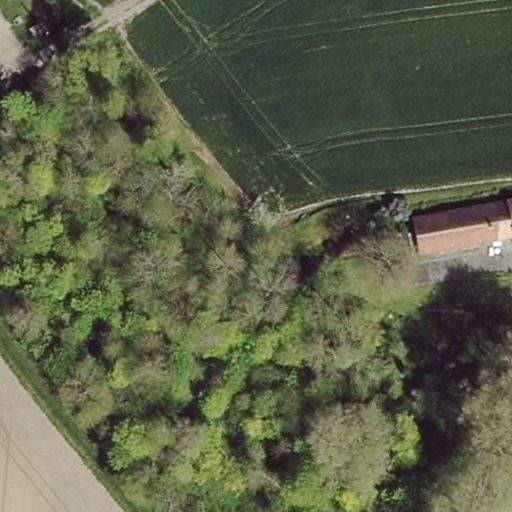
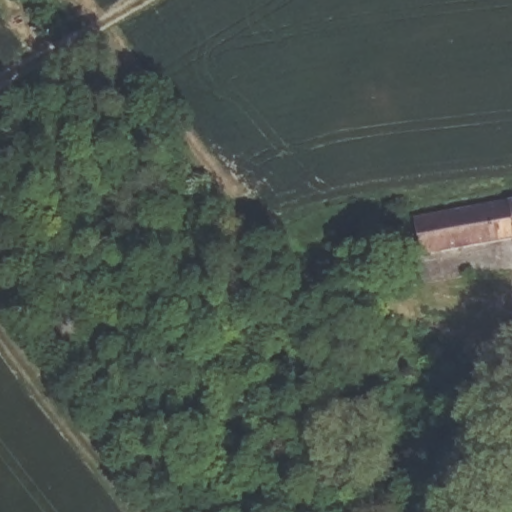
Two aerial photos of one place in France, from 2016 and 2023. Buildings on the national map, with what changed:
unchanged [(395,235),(393,230),(415,226),(414,219),(512,201),(512,241),(420,257),(418,252),(397,256),(395,235)]

